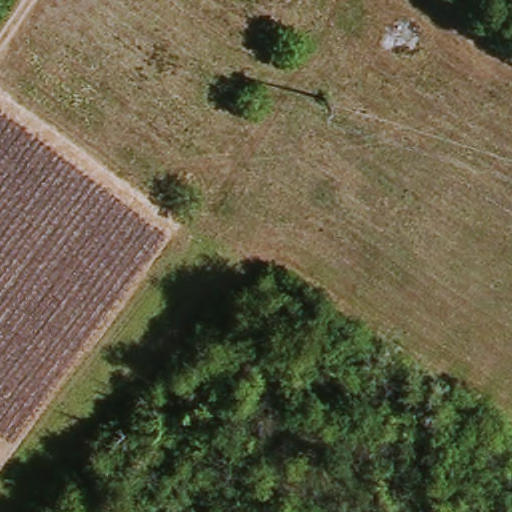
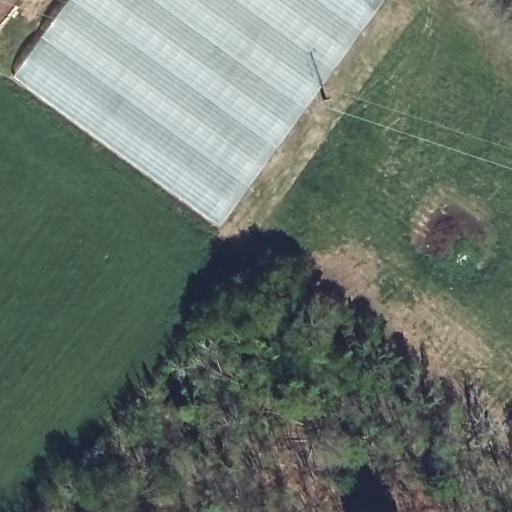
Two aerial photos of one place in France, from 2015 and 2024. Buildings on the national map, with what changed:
new [(65,0),(383,0),(219,226),(12,76),(65,0)]
demolished [(250,57),(161,0),(290,0),(250,57)]
demolished [(170,230),(0,454),(0,106),(170,230)]

